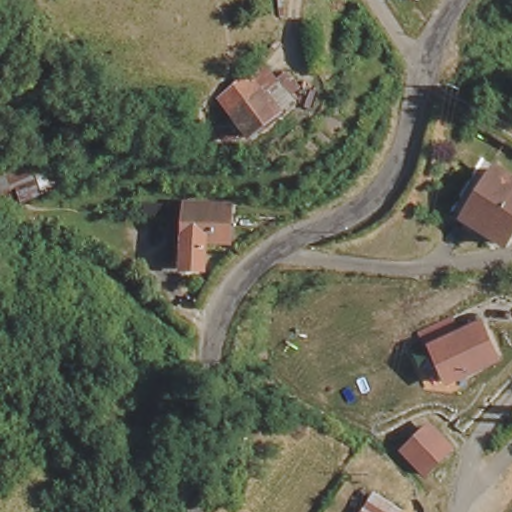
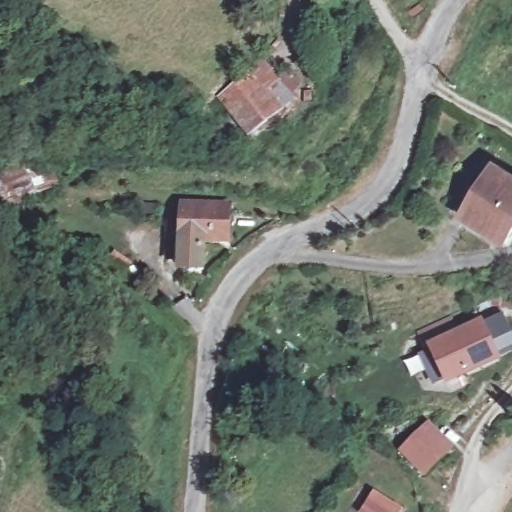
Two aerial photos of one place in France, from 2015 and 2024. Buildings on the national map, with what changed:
unchanged [(279,0),(285,0),(282,7),(279,0)]
unchanged [(235,113),(225,100),(265,66),(289,101),(253,136),(235,113)]
unchanged [(497,170),(512,179),(512,240),(509,245),(467,218),(497,170)]
unchanged [(190,237),(197,197),(238,204),(237,213),(229,248),(210,245),(204,277),(183,273),(190,237)]
unchanged [(452,317),(460,330),(483,319),(502,360),(447,387),(427,345),(423,346),(418,332),(452,317)]
unchanged [(433,421),(454,442),(429,467),(409,446),(433,421)]
unchanged [(385,491),(408,506),(404,512),(375,512),(373,511),(385,491)]

